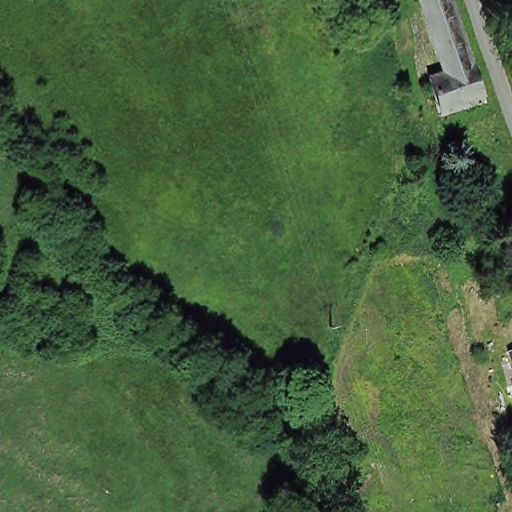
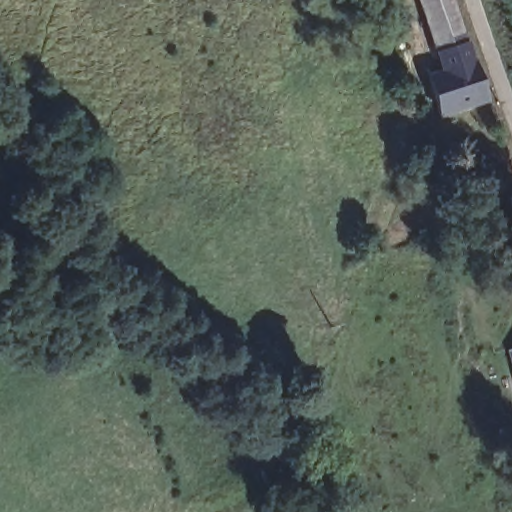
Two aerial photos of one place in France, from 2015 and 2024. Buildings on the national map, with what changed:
unchanged [(448,72),(431,21),(425,4),(424,0),(457,0),(461,12),(477,62),(448,72)]
unchanged [(433,89),(439,88),(435,76),(448,72),(477,62),(489,96),(446,110),(441,95),(435,97),(433,89)]
unchanged [(508,340),(512,339),(512,356),(508,340)]

